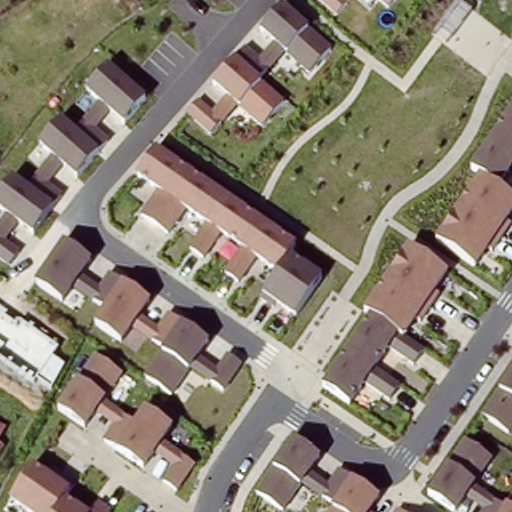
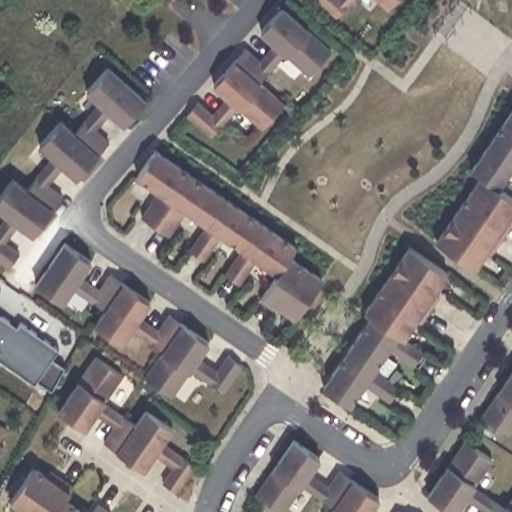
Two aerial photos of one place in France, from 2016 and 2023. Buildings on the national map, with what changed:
unchanged [(337,18),(319,0),(354,0),(337,18)]
unchanged [(387,7),(379,0),(394,0),(387,7)]
unchanged [(282,5),(310,29),(331,47),(308,72),(287,53),(261,82),(283,101),(261,127),(238,107),(208,139),(184,116),(200,100),(212,112),(227,96),(212,85),(234,61),(247,49),(257,61),(272,43),(260,32),(260,31),(282,5)]
unchanged [(0,217),(4,212),(0,209),(0,193),(12,176),(25,185),(47,156),(39,148),(60,120),(74,129),(95,101),(86,94),(107,67),(147,92),(125,125),(107,112),(92,132),(106,143),(78,179),(62,166),(46,189),(59,198),(31,234),(19,224),(7,242),(20,253),(8,267),(0,261),(0,217)]
unchanged [(500,188),(512,196),(512,212),(476,267),(435,240),(479,175),(468,167),(512,104),(512,167),(500,188)]
unchanged [(256,260),(239,282),(225,274),(241,248),(220,235),(203,258),(187,249),(205,224),(186,211),(168,235),(141,216),(157,190),(136,177),(154,148),(296,246),(287,255),(322,277),(295,317),(261,295),(275,273),(256,260)]
unchanged [(92,258),(83,276),(99,287),(106,275),(120,283),(150,302),(141,317),(158,328),(168,314),(179,323),(209,342),(200,357),(216,368),(225,353),(242,365),(224,393),(191,371),(174,395),(145,375),(162,351),(131,331),(122,343),(92,324),(104,310),(73,290),(65,303),(35,285),(62,241),(92,258)]
unchanged [(447,272),(404,337),(425,350),(413,367),(387,350),(374,368),(400,386),(389,401),(362,385),(349,403),(322,387),(368,315),(362,311),(405,245),(447,272)]
new [(19,324),(58,352),(49,365),(61,373),(51,393),(36,383),(34,387),(0,363),(0,317),(16,328),(19,324)]
unchanged [(122,376),(106,400),(124,415),(136,421),(143,410),(173,429),(164,442),(184,456),(196,465),(176,492),(160,481),(171,467),(155,455),(144,470),(116,451),(100,440),(112,426),(95,415),(85,430),(56,410),(77,380),(94,355),(122,376)]
unchanged [(482,415),(498,391),(512,371),(512,429),(509,433),(482,415)]
unchanged [(293,438),(322,457),(312,473),(327,483),(337,470),(350,480),(379,498),(371,512),(328,512),(332,507),(301,487),(284,511),(256,492),(273,467),(293,438)]
unchanged [(458,512),(457,512),(427,492),(447,465),(465,440),(491,457),(475,483),(505,507),(512,496),(512,512),(482,512),(466,501),(458,512)]
unchanged [(0,451),(0,443),(3,445),(0,451)]
unchanged [(70,490),(65,497),(86,512),(24,512),(8,501),(33,466),(47,475),(52,468),(75,486),(70,490)]
unchanged [(111,512),(110,512),(91,512),(99,502),(111,512)]
unchanged [(399,512),(395,512),(396,510),(399,512)]

